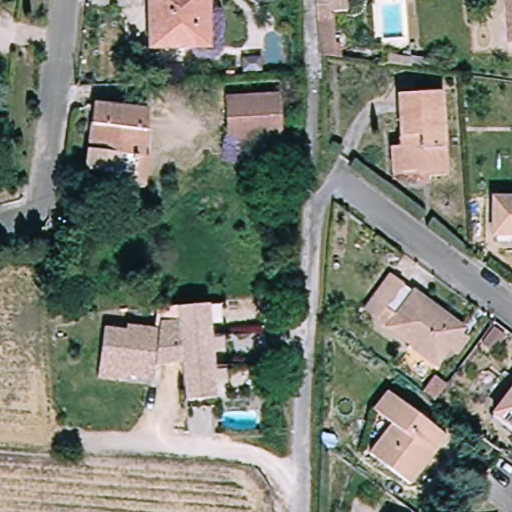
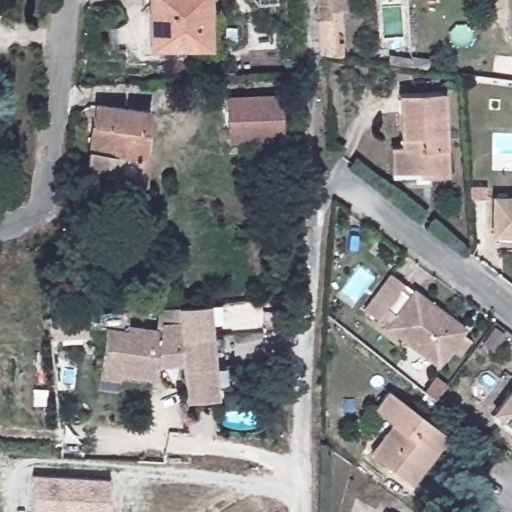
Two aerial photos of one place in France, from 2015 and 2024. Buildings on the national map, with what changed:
unchanged [(214,48),(156,48),(155,0),(214,0),(214,48)]
unchanged [(338,43),(345,43),(345,54),(325,51),(321,0),(336,0),(338,43)]
unchanged [(511,0),(512,0),(512,17),(511,0)]
unchanged [(1,12),(0,15),(0,12),(1,12)]
unchanged [(393,146),(405,146),(402,89),(445,88),(448,177),(433,178),(394,180),(393,146)]
unchanged [(287,141),(236,145),(233,102),(283,97),(287,141)]
unchanged [(90,172),(97,99),(154,109),(157,180),(90,172)]
unchanged [(511,234),(498,233),(497,198),(512,198),(512,243),(511,243),(511,234)]
unchanged [(467,329),(441,363),(372,311),(397,277),(467,329)]
unchanged [(99,373),(101,353),(105,323),(127,326),(128,321),(160,325),(161,318),(179,316),(177,302),(208,299),(211,330),(214,361),(184,364),(183,357),(157,357),(155,374),(120,369),(120,376),(99,373)]
unchanged [(186,395),(184,364),(214,362),(217,392),(187,395),(186,395)]
unchanged [(450,435),(414,481),(376,450),(397,423),(378,408),(393,389),(450,435)]
unchanged [(512,396),(512,424),(499,413),(512,396)]
new [(108,512),(31,512),(32,475),(110,479),(108,512)]

